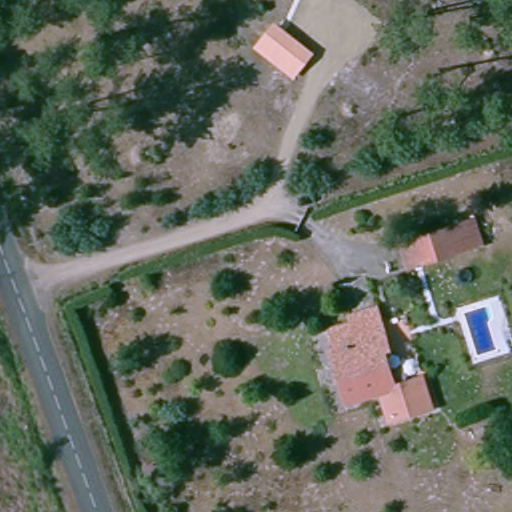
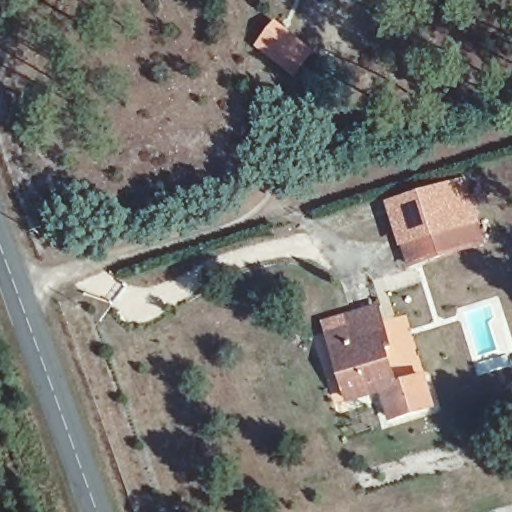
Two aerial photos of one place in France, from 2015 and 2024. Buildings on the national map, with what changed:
unchanged [(275,20),(314,53),(293,78),(254,45),(275,20)]
new [(431,229),(402,237),(388,202),(463,178),(475,215),(431,229)]
unchanged [(475,215),(486,249),(442,263),(431,229),(475,215)]
unchanged [(442,263),(413,273),(402,237),(431,229),(442,263)]
unchanged [(350,325),(351,313),(382,306),(395,351),(391,353),(398,385),(426,375),(435,409),(389,421),(380,397),(347,405),(330,328),(350,325)]

